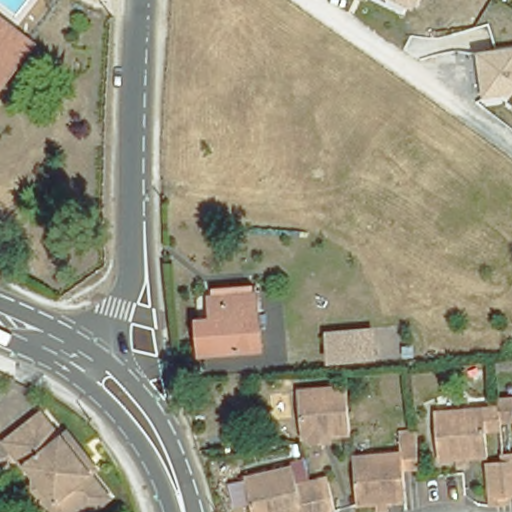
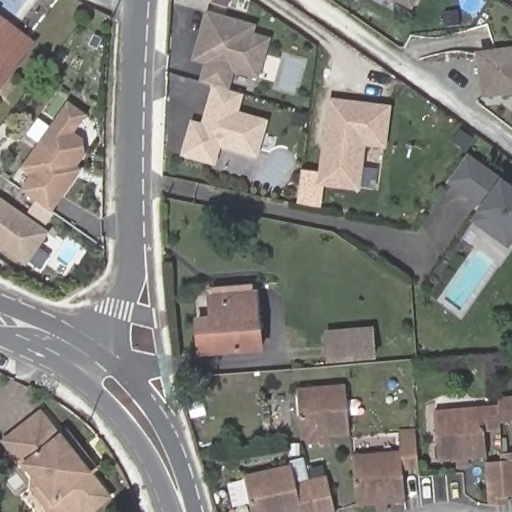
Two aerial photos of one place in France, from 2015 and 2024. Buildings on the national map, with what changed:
unchanged [(367,2),(363,0),(368,0),(367,2)]
unchanged [(414,12),(384,0),(419,0),(414,12)]
new [(213,85),(199,81),(204,64),(193,60),(207,11),(257,25),(254,34),(272,37),(259,80),(235,73),(230,90),(245,94),(239,112),(269,120),(258,159),(220,149),(215,166),(182,156),(191,121),(203,123),(213,85)]
unchanged [(0,86),(0,19),(31,45),(0,86)]
unchanged [(483,99),(474,53),(512,48),(512,94),(483,99)]
new [(387,149),(367,146),(361,191),(317,185),(328,97),(393,105),(387,149)]
new [(30,175),(21,167),(67,101),(88,115),(75,133),(84,140),(86,155),(78,167),(83,170),(52,212),(21,190),(30,175)]
new [(502,177),(512,185),(512,244),(509,249),(471,221),(479,210),(447,182),(468,155),(502,177)]
new [(0,247),(0,198),(50,232),(27,266),(0,247)]
unchanged [(218,305),(217,290),(256,287),(257,302),(259,302),(264,354),(207,358),(203,324),(218,323),(216,305),(218,305)]
unchanged [(376,331),(376,334),(389,332),(391,350),(344,355),(342,335),(376,331)]
unchanged [(322,445),(307,446),(307,440),(300,440),(298,391),(346,387),(350,436),(330,437),(330,445),(322,445)]
unchanged [(503,401),(512,401),(512,421),(504,422),(503,410),(503,401)]
unchanged [(504,422),(504,431),(489,432),(490,457),(443,461),(439,415),(503,410),(504,422)]
unchanged [(92,512),(83,512),(83,511),(82,512),(48,512),(48,508),(33,488),(34,475),(26,465),(24,466),(4,441),(40,419),(44,416),(60,438),(61,437),(67,432),(95,470),(89,474),(91,476),(99,487),(109,500),(103,504),(92,512)]
unchanged [(381,508),(380,500),(362,501),(358,453),(406,450),(404,428),(419,427),(423,464),(407,465),(409,498),(392,499),(393,507),(381,508)]
unchanged [(494,507),(489,464),(507,462),(507,455),(512,455),(512,498),(510,498),(511,506),(494,507)]
unchanged [(326,474),(334,510),(326,512),(301,512),(301,510),(295,512),(254,512),(245,474),(290,463),(295,481),(326,474)]

